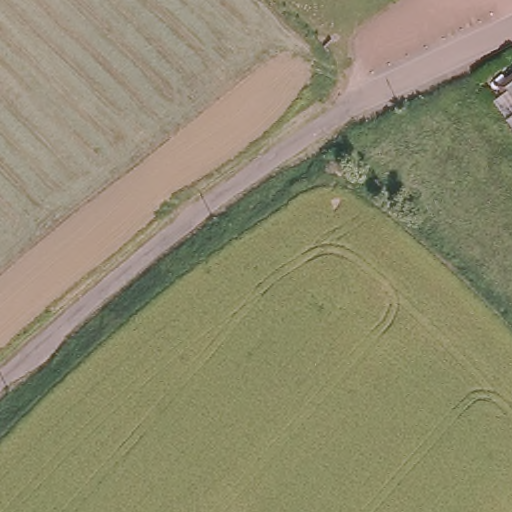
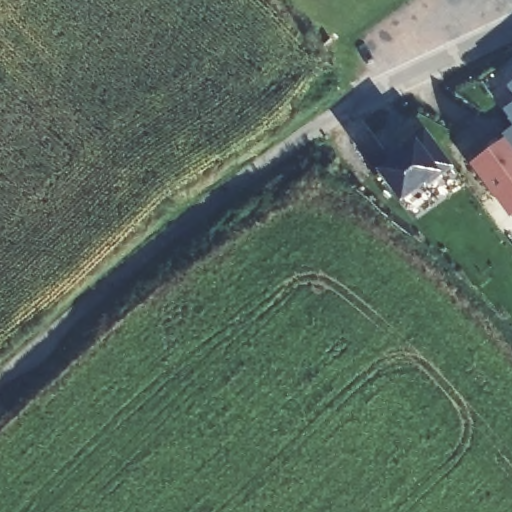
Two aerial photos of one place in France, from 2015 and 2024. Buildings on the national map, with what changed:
unchanged [(510,90),(512,88),(512,92),(510,90)]
new [(511,129),(512,131),(512,160),(497,140),(511,129)]
new [(396,160),(394,158),(422,136),(449,172),(421,194),(419,191),(397,207),(374,176),(396,160)]
new [(466,170),(487,152),(489,154),(501,145),(512,160),(512,218),(507,222),(466,170)]

